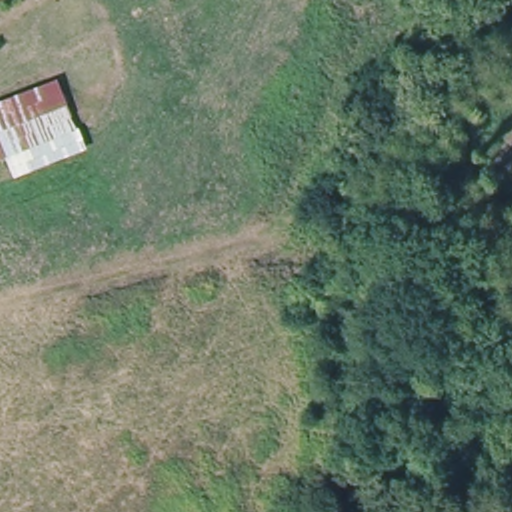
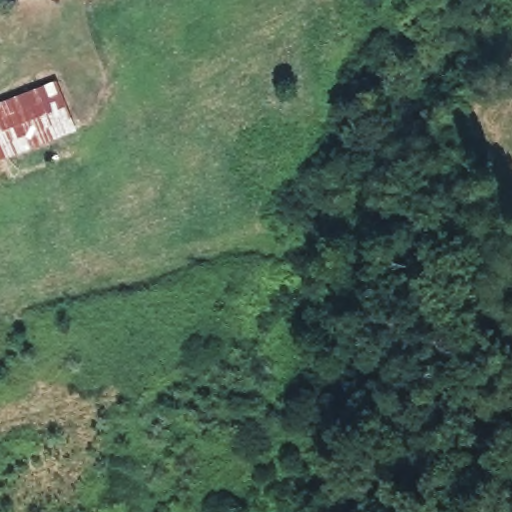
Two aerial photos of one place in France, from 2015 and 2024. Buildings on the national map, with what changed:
unchanged [(58,79),(86,150),(0,186),(0,98),(58,79)]

